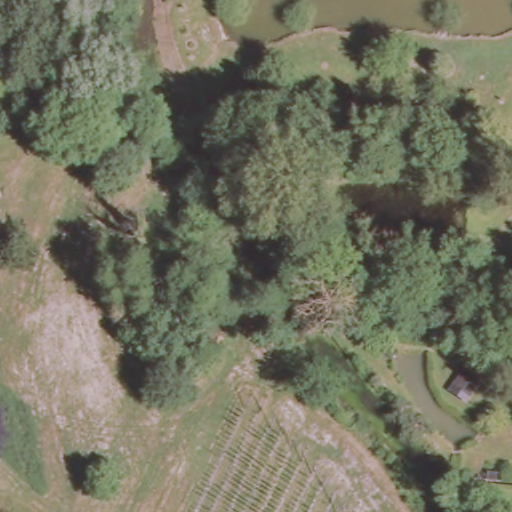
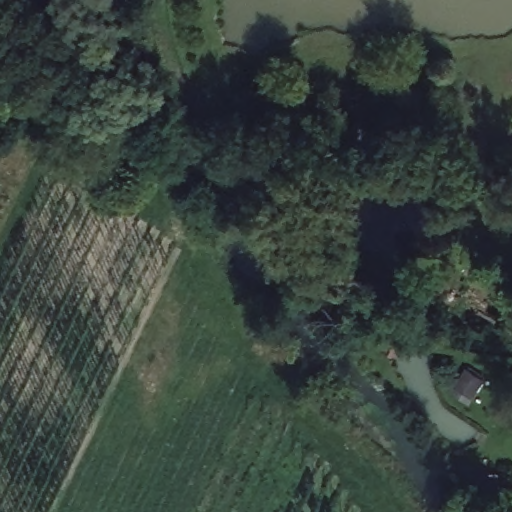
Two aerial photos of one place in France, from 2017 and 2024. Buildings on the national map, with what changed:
unchanged [(464,367),(480,376),(465,399),(454,387),(464,367)]

